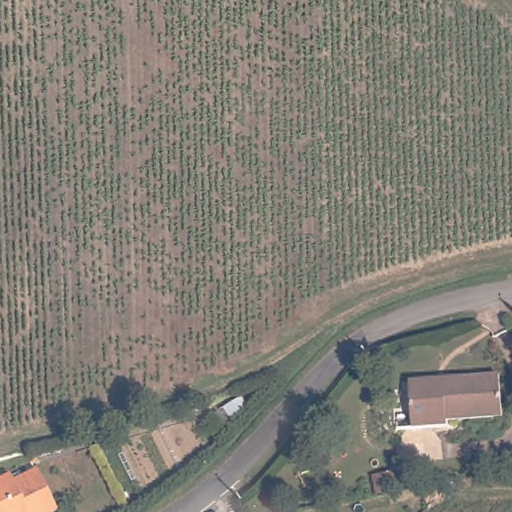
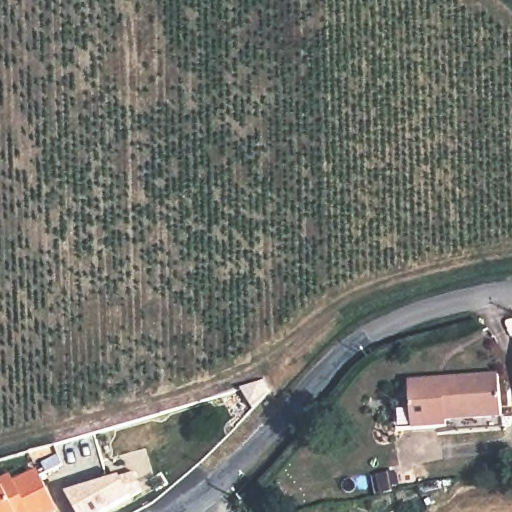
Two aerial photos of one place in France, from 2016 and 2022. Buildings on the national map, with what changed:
unchanged [(412,424),(412,384),(412,377),(445,376),(502,373),(503,416),(448,418),(448,423),(412,424)]
unchanged [(50,512),(0,512),(0,477),(7,473),(12,481),(35,469),(56,509),(50,512)]
new [(136,470),(143,492),(132,496),(102,512),(77,512),(67,491),(120,475),(136,470)]

